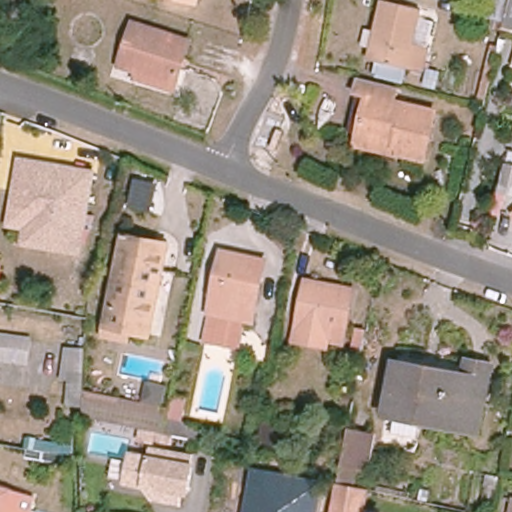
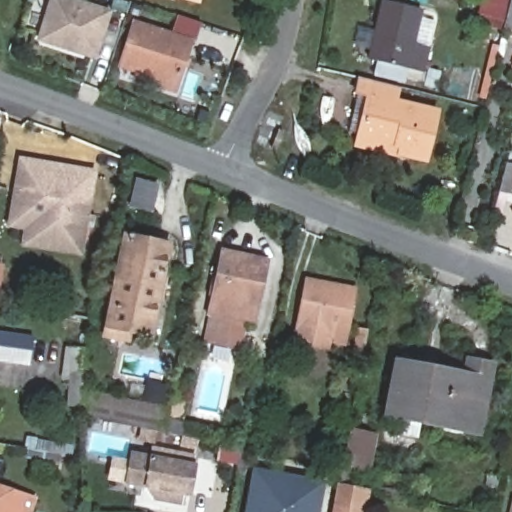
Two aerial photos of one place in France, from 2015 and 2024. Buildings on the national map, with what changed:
new [(36,39),(48,0),(84,0),(113,8),(97,59),(36,39)]
unchanged [(199,4),(180,0),(199,0),(199,4)]
unchanged [(417,10),(410,43),(425,47),(419,73),(364,60),(378,0),(417,10)]
unchanged [(504,28),(503,31),(477,24),(483,0),(511,0),(504,28)]
unchanged [(512,30),(504,28),(511,0),(512,0),(512,30)]
unchanged [(192,41),(176,91),(136,79),(139,72),(120,66),(134,22),(192,41)]
unchanged [(376,83),(394,87),(391,102),(432,112),(421,160),(392,153),(393,146),(354,137),(363,96),(352,93),(356,79),(376,83)]
unchanged [(82,255),(20,246),(22,228),(6,226),(19,156),(96,170),(82,255)]
unchanged [(512,212),(512,215),(511,212),(512,212)]
unchanged [(170,244),(151,336),(130,331),(128,341),(105,336),(126,235),(170,244)]
unchanged [(257,309),(254,324),(245,322),(240,349),(206,341),(212,315),(209,314),(223,250),(260,258),(250,307),(257,309)]
unchanged [(355,289),(344,344),(297,335),(307,280),(355,289)]
unchanged [(27,338),(33,340),(31,352),(27,367),(0,361),(0,332),(27,338)]
unchanged [(84,390),(83,406),(68,406),(69,382),(63,381),(64,346),(86,347),(85,373),(84,390)]
unchanged [(463,356),(488,361),(475,428),(381,410),(389,368),(397,370),(399,359),(461,371),(463,356)]
unchanged [(84,390),(171,408),(169,418),(166,433),(153,431),(83,416),(83,406),(84,390)]
unchanged [(344,458),(349,430),(375,436),(368,471),(343,465),(344,458)]
unchanged [(190,496),(183,495),(182,506),(151,499),(142,487),(124,484),(124,479),(110,477),(113,457),(129,460),(129,451),(150,453),(151,444),(198,454),(190,496)]
unchanged [(323,480),(318,512),(244,512),(251,468),(323,480)]
unchanged [(369,490),(365,512),(334,512),(339,484),(369,490)]
unchanged [(0,512),(0,489),(11,492),(5,512),(0,512)]
unchanged [(35,499),(31,512),(5,512),(11,492),(35,499)]
unchanged [(512,498),(512,512),(507,512),(510,497),(512,498)]

